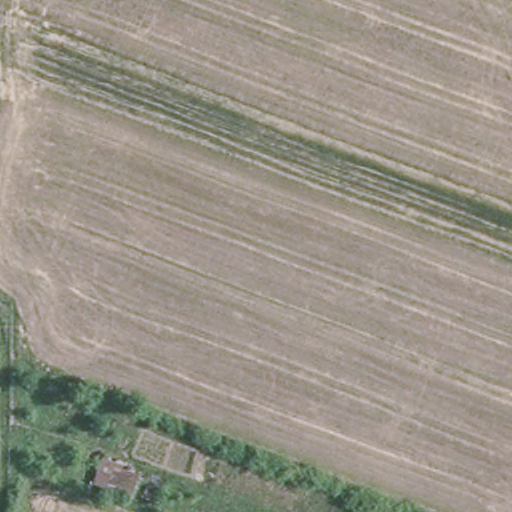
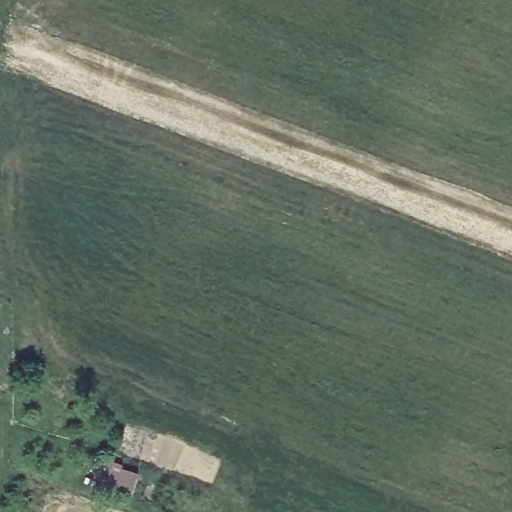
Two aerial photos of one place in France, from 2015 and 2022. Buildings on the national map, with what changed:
unchanged [(132,501),(86,489),(104,456),(146,473),(132,501)]

